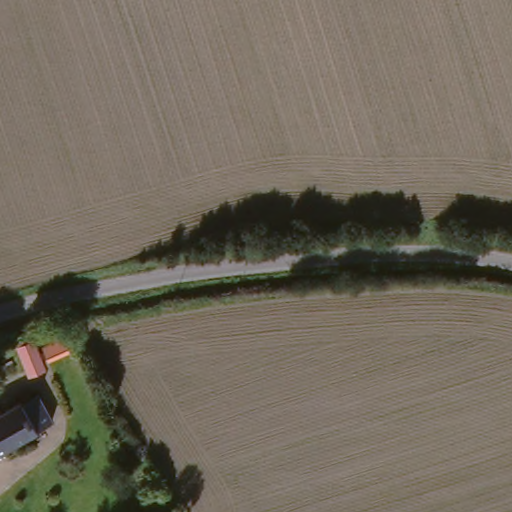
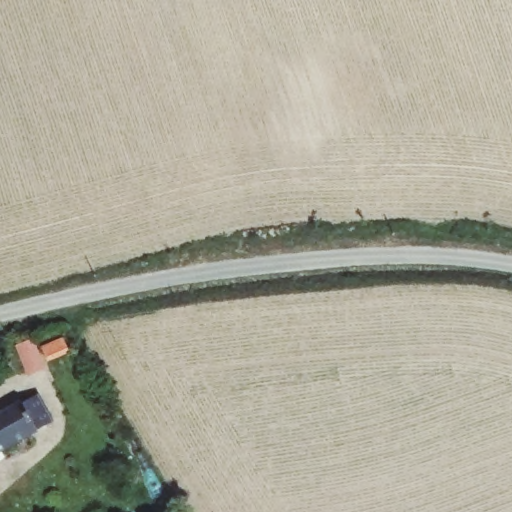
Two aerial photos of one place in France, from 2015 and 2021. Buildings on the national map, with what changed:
unchanged [(40,397),(56,435),(0,458),(0,414),(40,397)]

